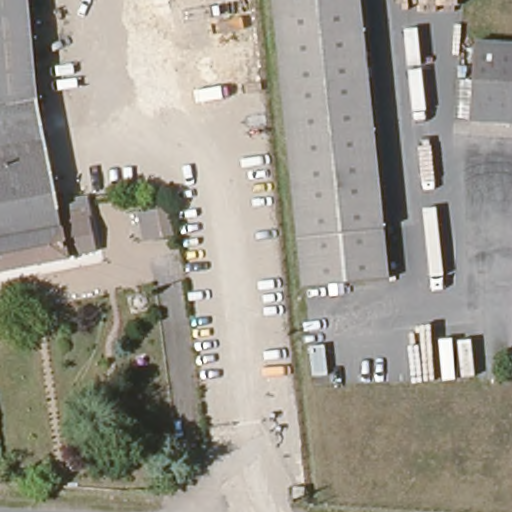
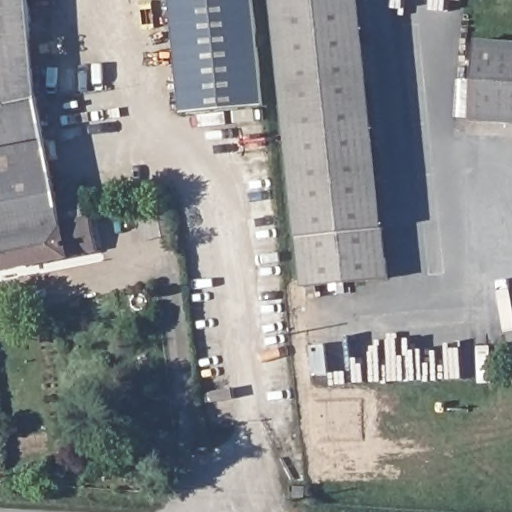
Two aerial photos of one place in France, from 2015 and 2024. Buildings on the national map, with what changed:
unchanged [(39,90),(0,97),(0,0),(33,0),(39,90)]
new [(182,113),(172,0),(253,0),(263,105),(182,113)]
unchanged [(296,233),(282,0),(365,0),(379,226),(296,233)]
unchanged [(469,120),(476,42),(512,45),(512,123),(469,120)]
unchanged [(53,194),(0,201),(0,97),(39,90),(53,194)]
unchanged [(88,216),(92,259),(64,264),(62,246),(0,258),(0,201),(53,194),(57,218),(88,216)]
unchanged [(382,275),(299,282),(296,233),(379,226),(382,275)]
unchanged [(0,258),(62,246),(64,264),(0,274),(0,258)]

